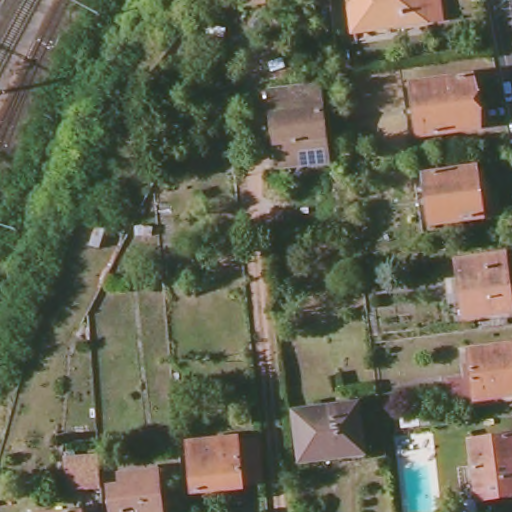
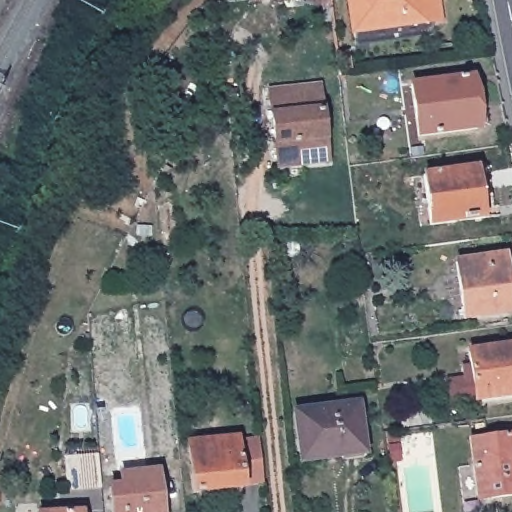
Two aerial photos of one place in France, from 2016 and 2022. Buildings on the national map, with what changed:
unchanged [(284,1),(285,5),(245,9),(250,0),(284,0),(284,1)]
unchanged [(424,2),(440,0),(442,21),(353,31),(349,0),(424,0),(424,2)]
unchanged [(480,129),(417,136),(410,84),(474,77),(480,129)]
unchanged [(327,165),(278,171),(269,95),(320,90),(327,165)]
unchanged [(494,198),(482,199),(485,219),(429,225),(422,174),(490,167),(494,198)]
unchanged [(512,296),(512,313),(463,320),(455,262),(506,255),(512,296)]
unchanged [(475,402),(467,352),(512,346),(512,396),(475,402)]
unchanged [(364,457),(339,460),(338,456),(299,460),(293,413),(355,404),(364,457)]
unchanged [(486,501),(485,485),(470,487),(465,442),(512,437),(512,498),(486,501)]
unchanged [(242,494),(191,500),(187,448),(236,443),(242,494)]
unchanged [(99,467),(100,489),(67,492),(65,460),(98,458),(99,467)]
unchanged [(110,512),(107,487),(119,486),(117,475),(157,471),(161,512),(110,512)]

